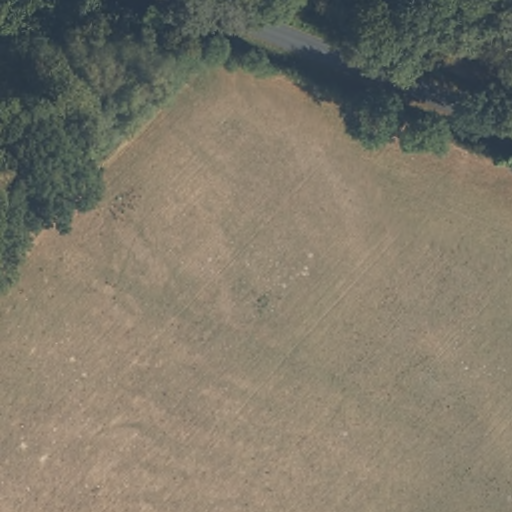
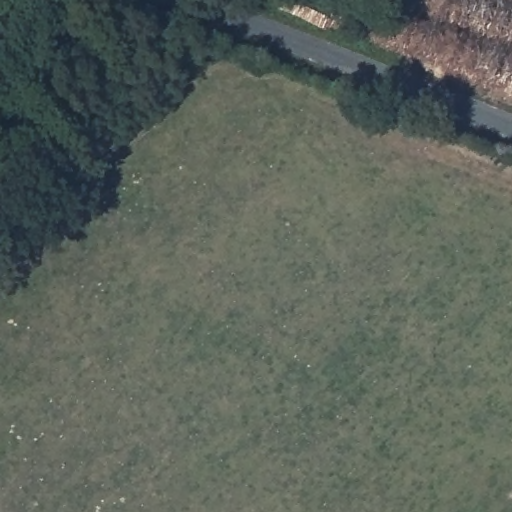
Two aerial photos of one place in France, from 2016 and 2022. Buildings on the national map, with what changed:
[]

